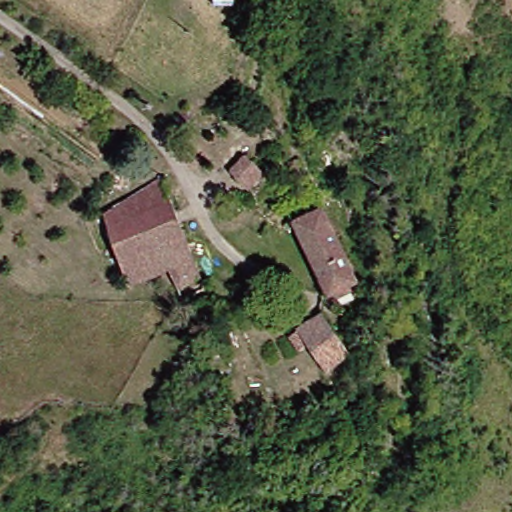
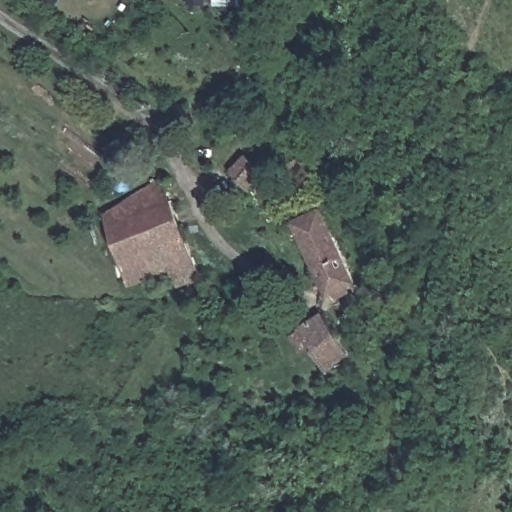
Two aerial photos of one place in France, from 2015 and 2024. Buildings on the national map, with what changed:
unchanged [(249,154),(266,175),(249,190),(230,171),(249,154)]
unchanged [(97,200),(118,193),(122,206),(138,203),(136,190),(167,180),(199,282),(176,287),(168,268),(125,279),(97,200)]
unchanged [(325,293),(297,220),(325,208),(358,279),(325,293)]
unchanged [(298,329),(323,314),(350,355),(325,371),(298,329)]

